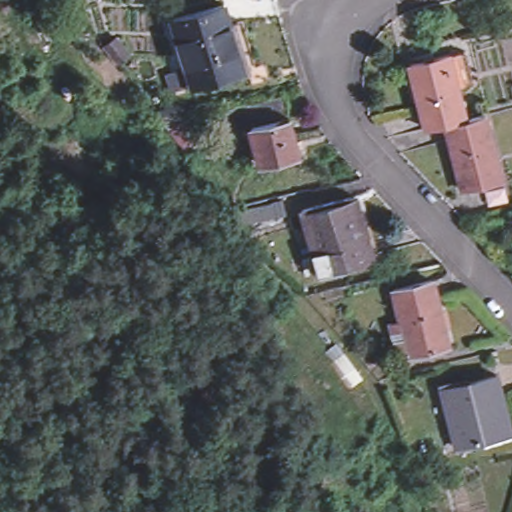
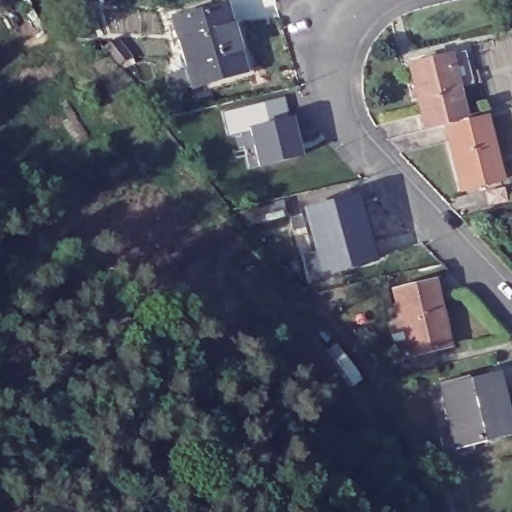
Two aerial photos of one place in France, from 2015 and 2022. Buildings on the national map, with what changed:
unchanged [(178,11),(222,0),(228,0),(233,21),(246,67),(213,76),(197,80),(178,11)]
unchanged [(246,67),(233,21),(247,17),(263,71),(214,84),(213,76),(246,67)]
unchanged [(441,60),(456,56),(464,90),(449,94),(458,123),(436,129),(418,133),(402,70),(441,60)]
unchanged [(264,178),(256,142),(250,120),(288,111),(294,134),(302,169),(264,178)]
unchanged [(476,118),(494,185),(454,195),(436,129),(458,123),(476,118)]
unchanged [(358,195),(374,258),(321,271),(306,208),(358,195)]
unchanged [(442,276),(457,340),(399,355),(383,290),(442,276)]
unchanged [(497,377),(504,405),(497,407),(505,437),(455,450),(441,392),(497,377)]

